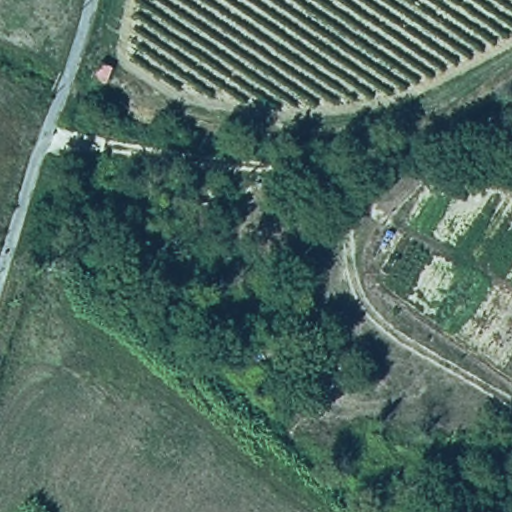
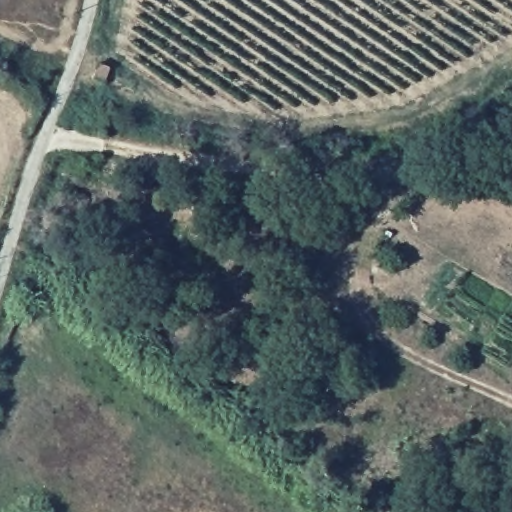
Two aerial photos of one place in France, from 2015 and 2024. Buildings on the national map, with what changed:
unchanged [(91,86),(98,61),(118,69),(113,90),(91,86)]

